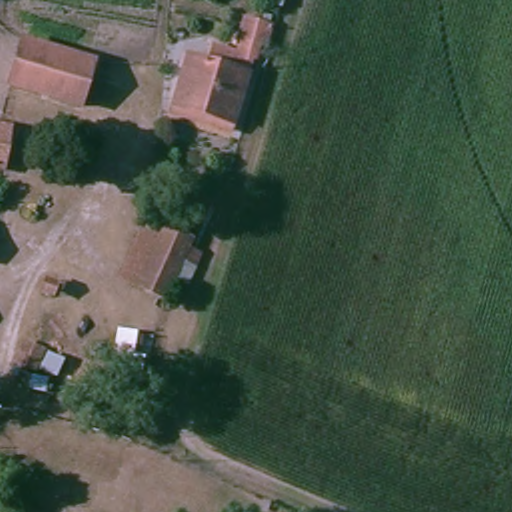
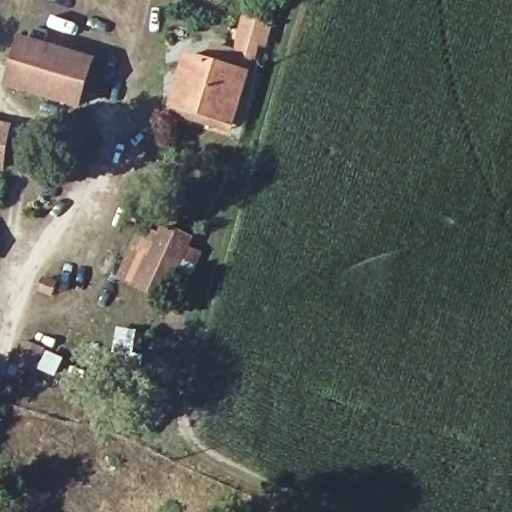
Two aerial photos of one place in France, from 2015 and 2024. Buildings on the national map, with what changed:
unchanged [(86,83),(40,71),(35,94),(8,88),(20,39),(92,58),(86,83)]
unchanged [(177,117),(182,102),(199,54),(226,64),(234,45),(260,47),(235,116),(231,130),(177,117)]
unchanged [(40,71),(86,83),(80,105),(35,94),(40,71)]
unchanged [(5,124),(0,156),(0,122),(5,124)]
unchanged [(165,307),(147,278),(175,221),(202,226),(165,307)]
unchanged [(69,356),(46,399),(25,392),(31,373),(23,368),(33,341),(69,356)]

